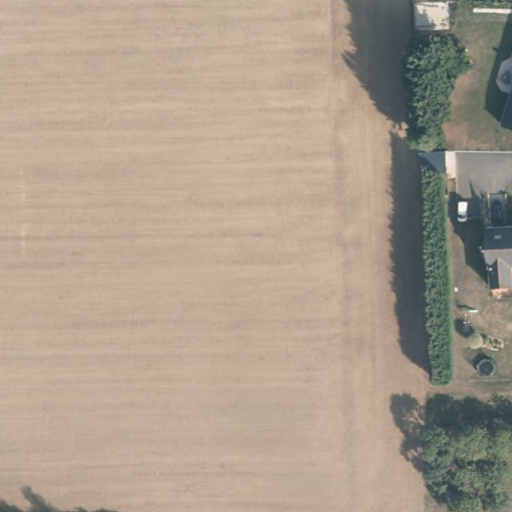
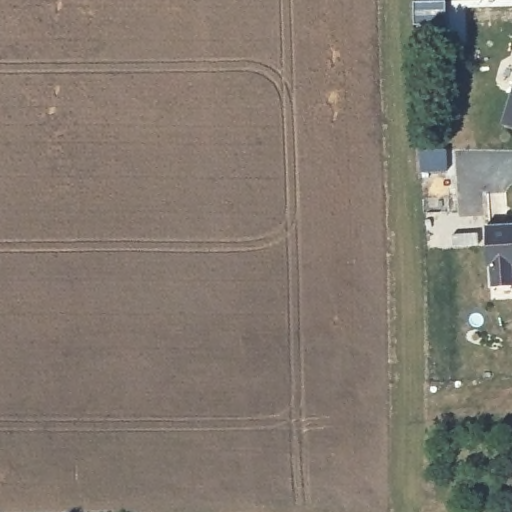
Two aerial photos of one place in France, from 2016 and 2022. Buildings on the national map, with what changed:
unchanged [(500,60),(512,64),(512,85),(492,81),(500,60)]
unchanged [(512,85),(512,128),(500,124),(512,85)]
unchanged [(491,266),(489,266),(486,227),(512,225),(512,284),(492,285),(491,266)]

